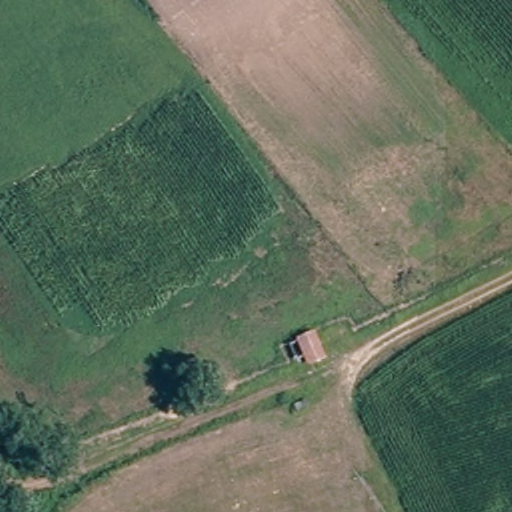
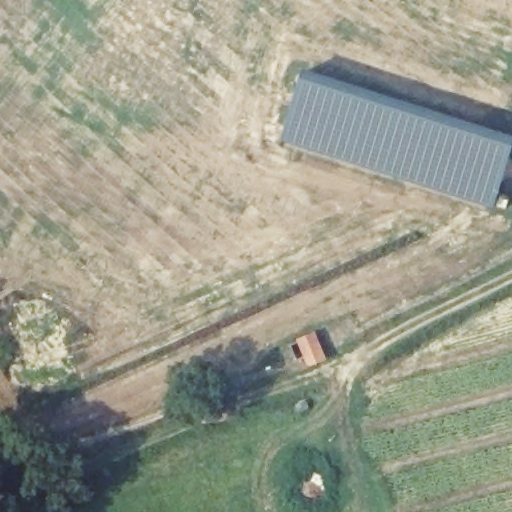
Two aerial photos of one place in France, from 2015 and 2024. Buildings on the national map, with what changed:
new [(304,70),(512,135),(512,154),(494,211),(282,145),(304,70)]
unchanged [(308,365),(296,338),(312,331),(323,358),(308,365)]

